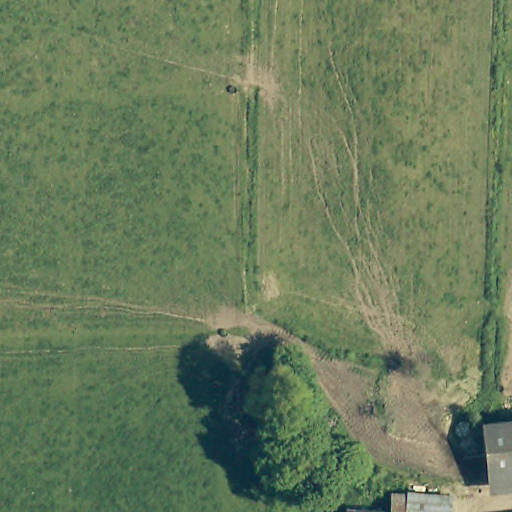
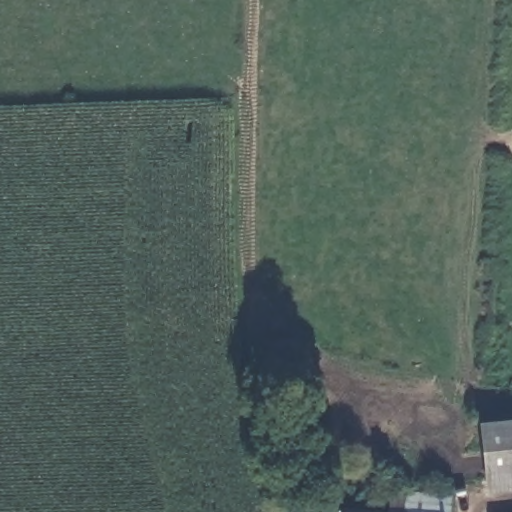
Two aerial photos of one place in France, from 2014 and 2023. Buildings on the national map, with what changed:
unchanged [(512,478),(489,481),(488,467),(484,427),(491,427),(512,425),(512,478)]
unchanged [(450,493),(450,505),(450,512),(347,512),(347,507),(388,510),(390,493),(403,493),(407,493),(407,491),(450,493)]

